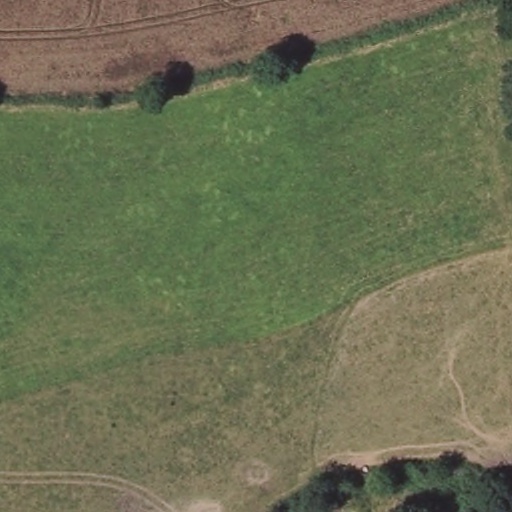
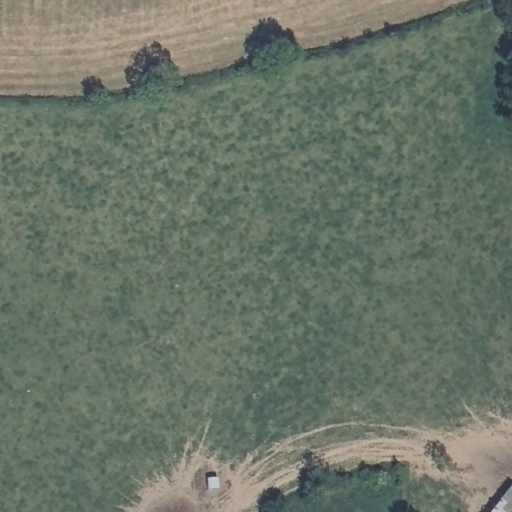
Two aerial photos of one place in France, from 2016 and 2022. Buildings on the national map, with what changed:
unchanged [(512,491),(512,512),(488,512),(495,505),(508,488),(512,491)]

